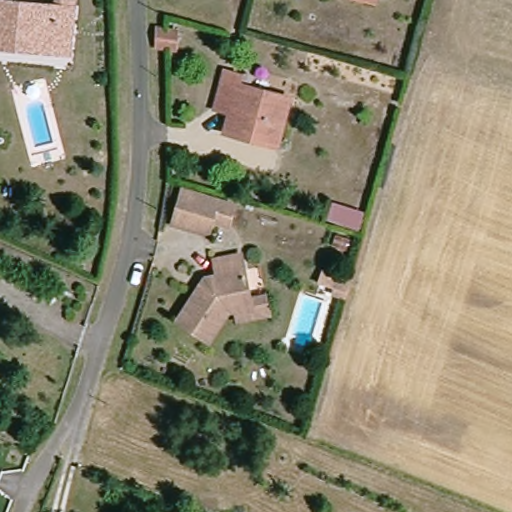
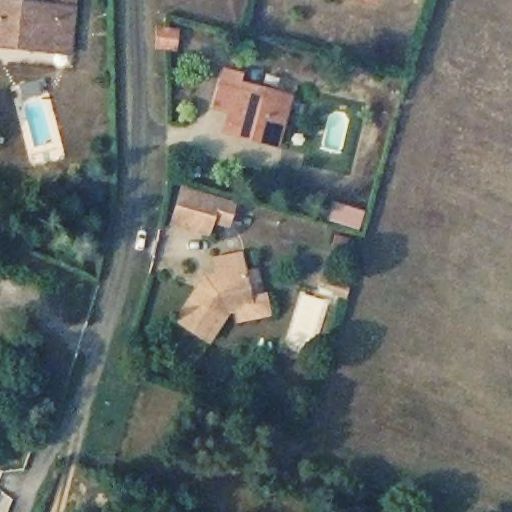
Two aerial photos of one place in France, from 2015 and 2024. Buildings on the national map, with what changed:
unchanged [(0,45),(0,0),(75,8),(74,26),(71,53),(55,51),(0,45)]
unchanged [(59,1),(59,0),(76,0),(76,3),(59,1)]
unchanged [(369,0),(374,0),(374,1),(369,0)]
unchanged [(175,51),(162,49),(155,48),(155,28),(162,29),(177,31),(175,51)]
unchanged [(222,128),(227,108),(214,104),(223,66),(240,70),(237,79),(290,93),(276,143),(258,138),(240,133),(222,128)]
unchanged [(226,221),(210,216),(206,230),(171,220),(181,185),(232,200),(226,221)]
unchanged [(356,229),(327,220),(332,204),(361,213),(356,229)]
unchanged [(268,316),(236,322),(234,312),(227,314),(209,343),(175,322),(203,277),(214,275),(211,260),(240,254),(250,300),(265,296),(268,316)]
unchanged [(345,298),(332,294),(337,276),(350,280),(345,298)]

